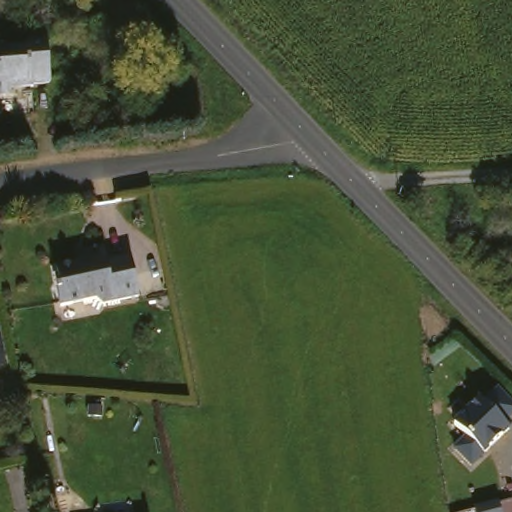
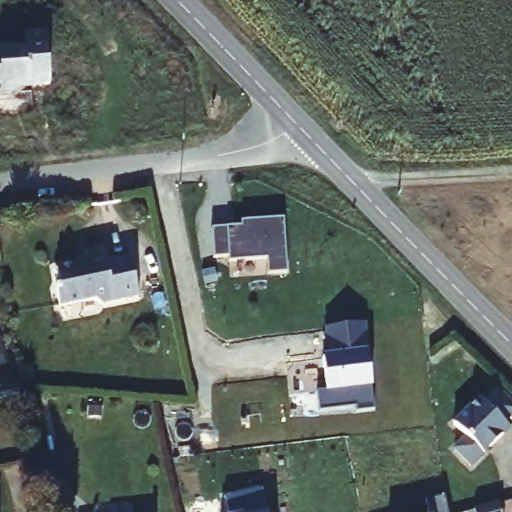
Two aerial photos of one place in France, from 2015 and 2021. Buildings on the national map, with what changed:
unchanged [(27,86),(0,88),(0,43),(21,41),(20,27),(42,26),(47,75),(26,77),(27,86)]
new [(245,226),(245,221),(287,218),(291,272),(271,274),(270,259),(232,261),(232,257),(217,257),(215,227),(245,226)]
unchanged [(88,298),(54,305),(50,287),(53,282),(51,268),(81,262),(78,250),(97,247),(100,262),(124,257),(132,296),(96,303),(88,298)]
new [(317,392),(325,391),(321,360),(331,359),(327,329),(363,323),(367,355),(370,386),(373,411),(357,413),(356,407),(319,412),(317,392)]
unchanged [(451,449),(462,438),(450,427),(477,402),(485,407),(499,394),(512,408),(512,417),(507,422),(512,428),(512,432),(470,466),(451,449)]
new [(237,512),(227,512),(224,497),(261,490),(265,512),(242,512),(242,511),(237,512)]

